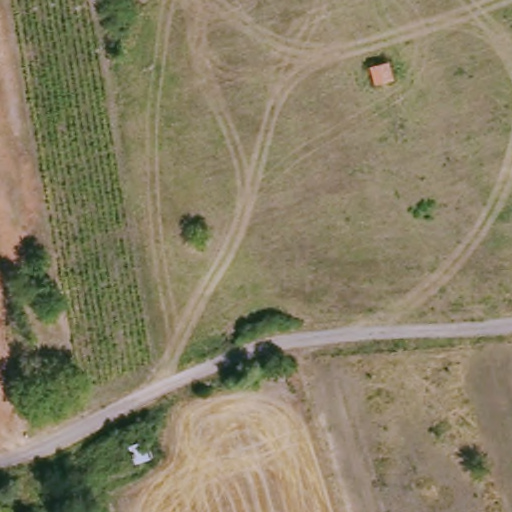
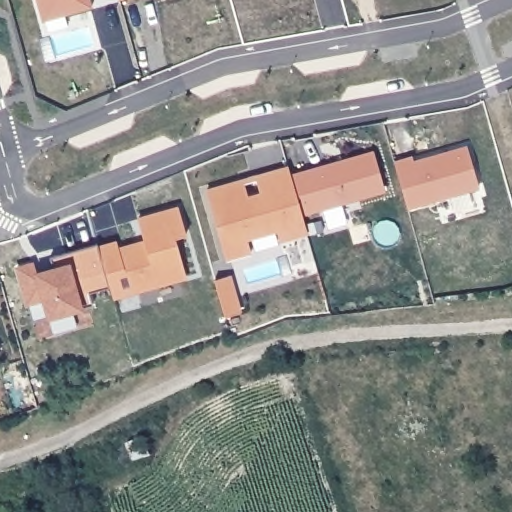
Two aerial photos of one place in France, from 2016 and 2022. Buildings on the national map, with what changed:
new [(69,16),(68,11),(43,19),(38,0),(88,0),(91,10),(69,16)]
demolished [(364,63),(390,54),(398,79),(374,85),(364,63)]
new [(479,187),(407,208),(394,161),(412,156),(413,161),(467,146),(479,187)]
new [(385,191),(303,215),(291,175),(374,151),(385,191)]
new [(307,232),(280,239),(277,229),(248,238),(251,252),(226,259),(206,191),(242,181),(248,201),(263,197),(257,177),(289,168),(307,232)]
new [(186,276),(113,297),(98,247),(117,242),(119,251),(141,245),(143,240),(138,219),(178,207),(186,234),(174,237),(186,276)]
new [(110,287),(89,292),(93,304),(48,317),(43,299),(28,304),(18,268),(34,263),(37,273),(53,268),(50,257),(98,243),(110,287)]
new [(225,317),(221,304),(214,281),(229,276),(236,300),(239,313),(225,317)]
unchanged [(138,462),(131,444),(149,437),(156,456),(138,462)]

